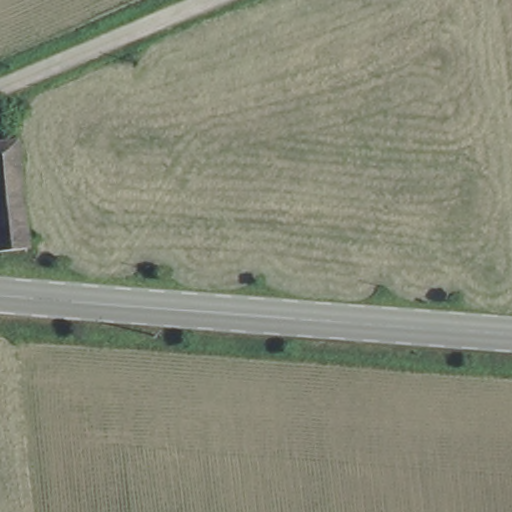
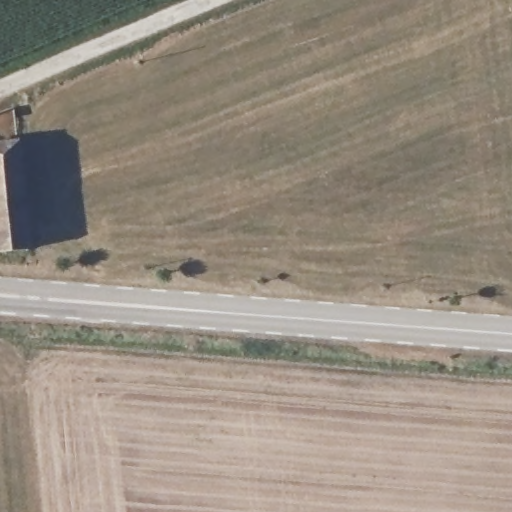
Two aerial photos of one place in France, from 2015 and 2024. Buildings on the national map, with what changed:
unchanged [(25,240),(0,241),(0,144),(14,142),(25,240)]

